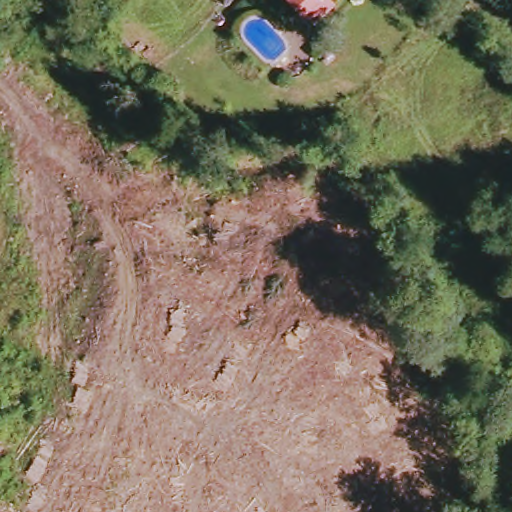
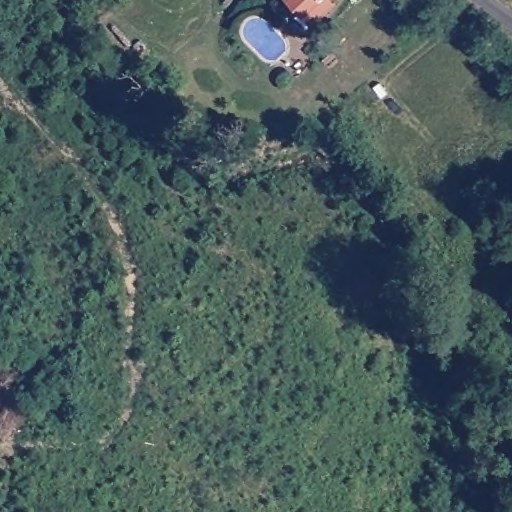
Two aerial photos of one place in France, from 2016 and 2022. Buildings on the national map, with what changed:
unchanged [(297,0),(333,0),(339,5),(321,22),(297,0)]

